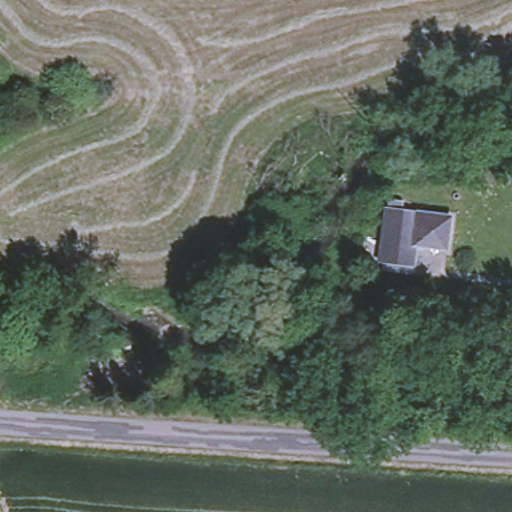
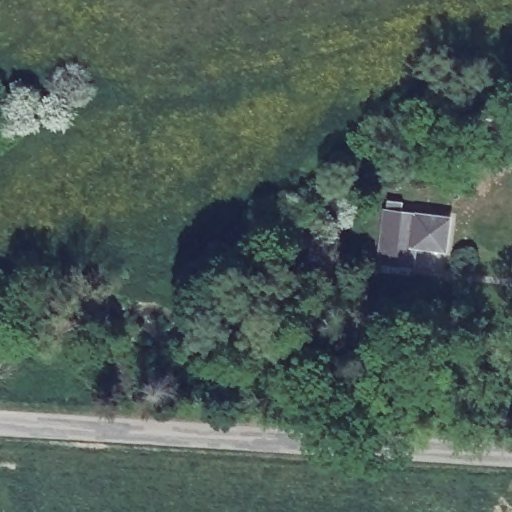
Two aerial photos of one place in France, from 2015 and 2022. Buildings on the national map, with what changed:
unchanged [(380,271),(382,263),(375,262),(382,209),(383,199),(398,201),(397,211),(445,217),(442,249),(411,246),(408,266),(405,266),(403,274),(380,271)]

